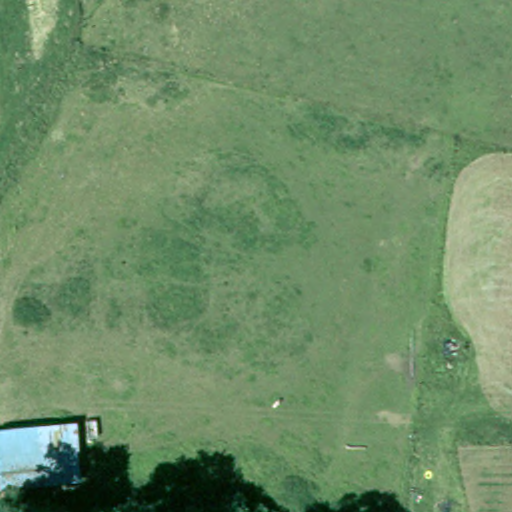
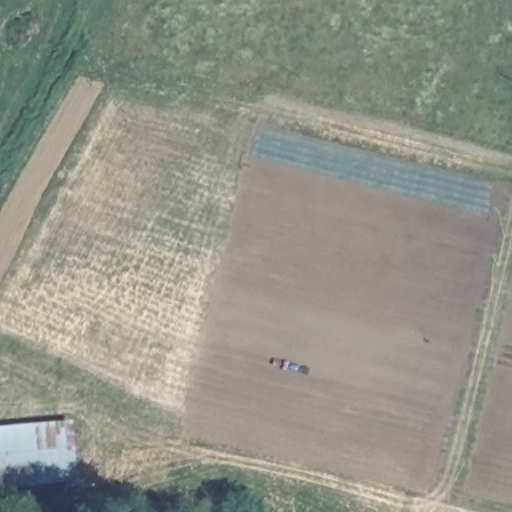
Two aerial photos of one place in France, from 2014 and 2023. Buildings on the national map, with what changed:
unchanged [(80,470),(2,478),(0,456),(0,423),(74,415),(80,470)]

